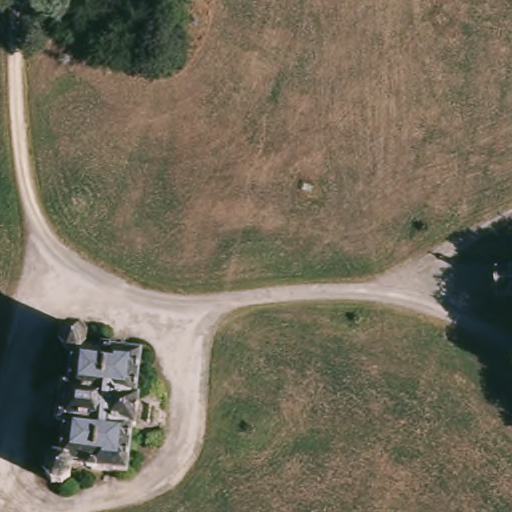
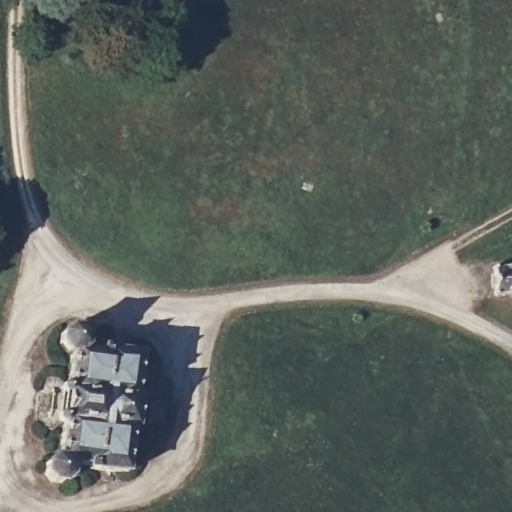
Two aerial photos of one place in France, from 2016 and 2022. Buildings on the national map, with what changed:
unchanged [(491,267),(512,266),(512,294),(492,295),(491,267)]
unchanged [(137,354),(132,398),(135,399),(132,428),(128,428),(122,473),(87,468),(87,465),(61,462),(65,467),(65,471),(64,476),(64,477),(56,483),(46,482),(40,474),(42,464),(49,458),(55,459),(60,421),(57,420),(60,391),(63,391),(67,353),(62,353),(56,345),(57,335),(65,328),(75,329),(82,337),(81,347),(79,349),(102,352),(102,349),(137,354)]

